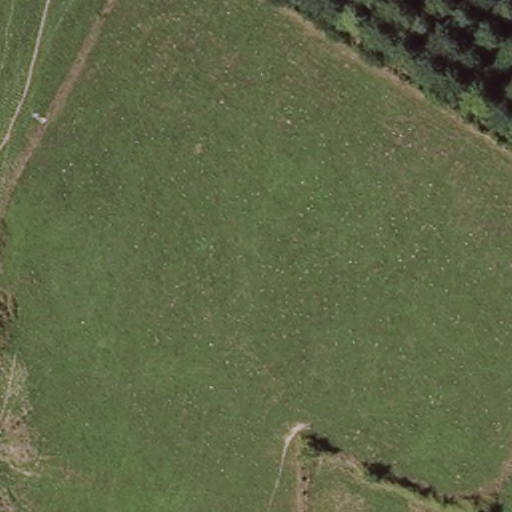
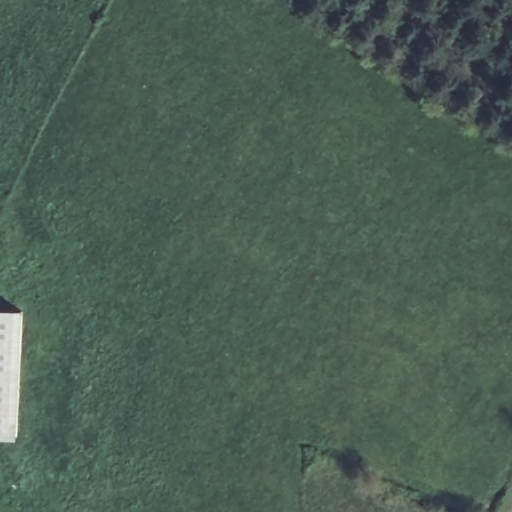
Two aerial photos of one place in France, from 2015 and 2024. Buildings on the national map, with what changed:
new [(0,438),(0,308),(25,310),(20,439),(0,438)]

